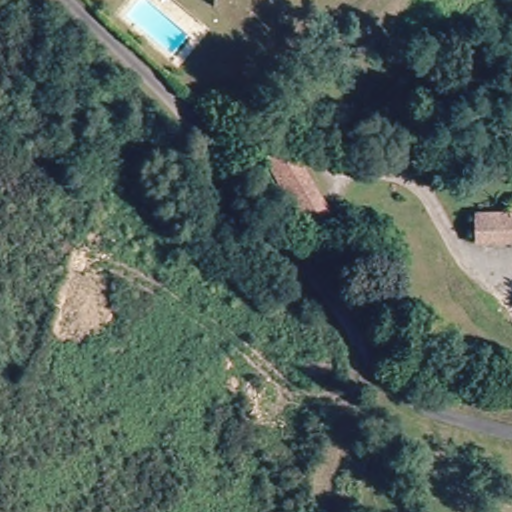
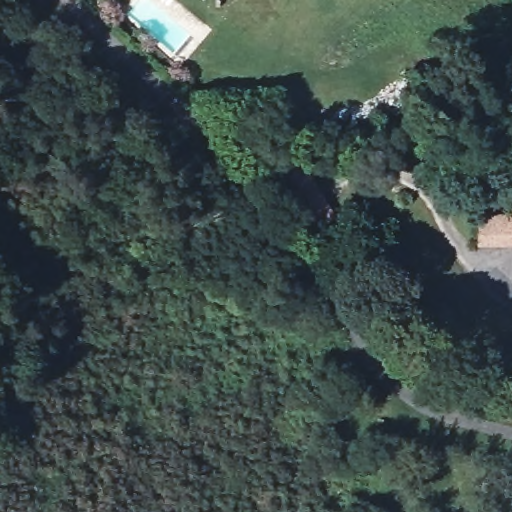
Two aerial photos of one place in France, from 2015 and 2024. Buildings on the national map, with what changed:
unchanged [(302,166),(335,218),(311,231),(265,160),(302,166)]
unchanged [(478,248),(477,221),(511,219),(510,208),(512,207),(512,247),(478,248)]

